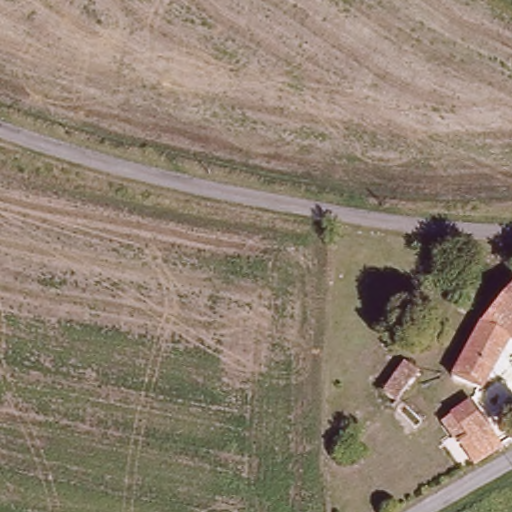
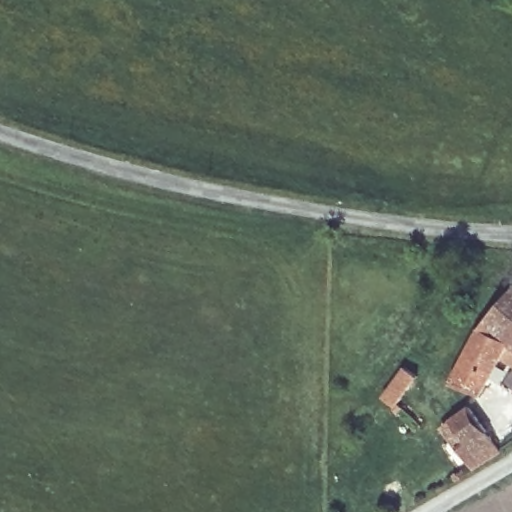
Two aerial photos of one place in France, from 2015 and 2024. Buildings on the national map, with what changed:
unchanged [(481,390),(450,375),(475,318),(511,280),(512,281),(512,343),(510,341),(481,390)]
unchanged [(401,406),(407,410),(399,422),(391,416),(394,412),(381,403),(404,370),(419,381),(401,406)]
unchanged [(471,461),(445,425),(470,405),(502,445),(471,461)]

